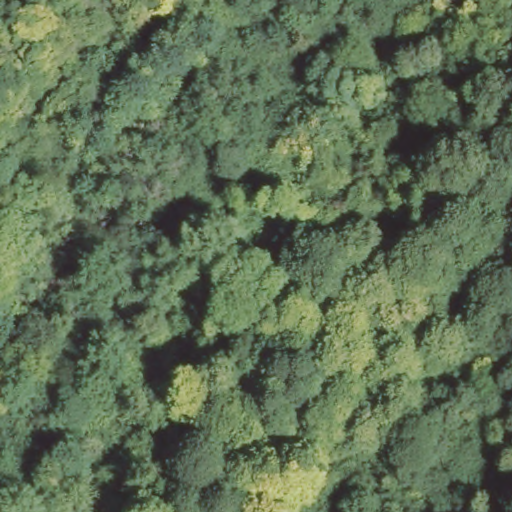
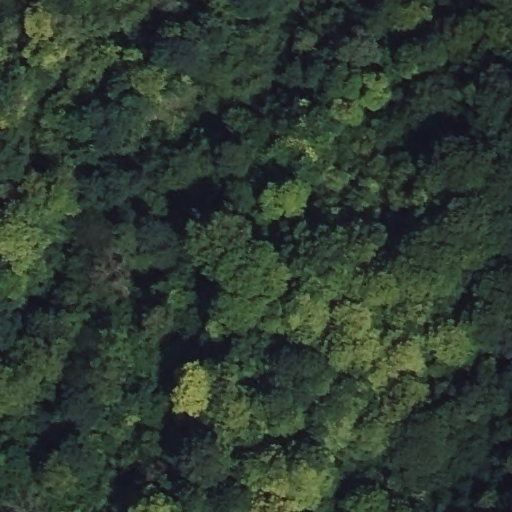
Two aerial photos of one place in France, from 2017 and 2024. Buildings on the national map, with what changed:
[]

